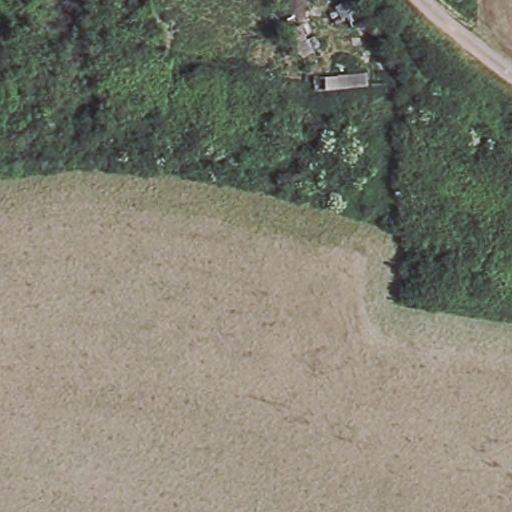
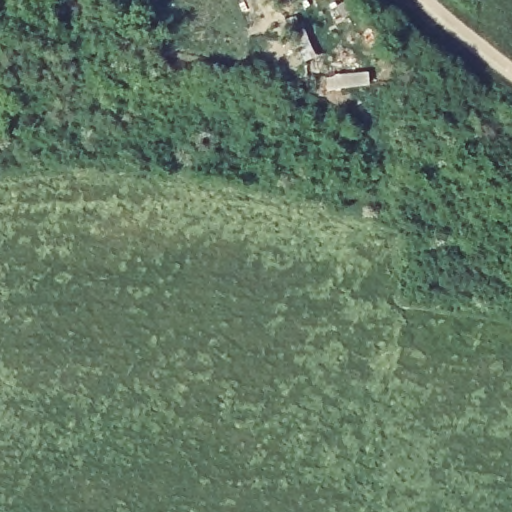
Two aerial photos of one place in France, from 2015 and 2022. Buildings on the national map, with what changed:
unchanged [(340,0),(367,0),(372,11),(352,24),(340,0)]
unchanged [(319,83),(318,70),(369,69),(369,85),(319,83)]

